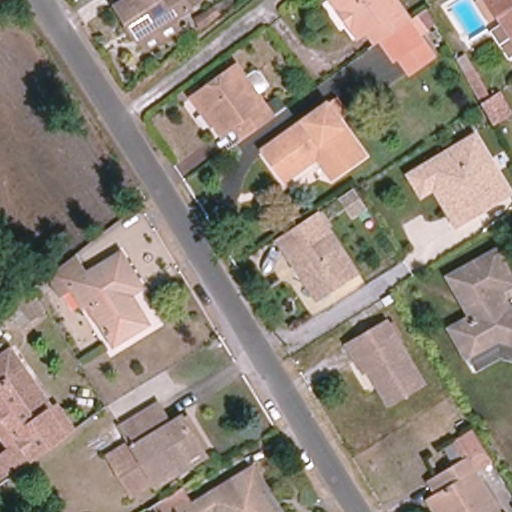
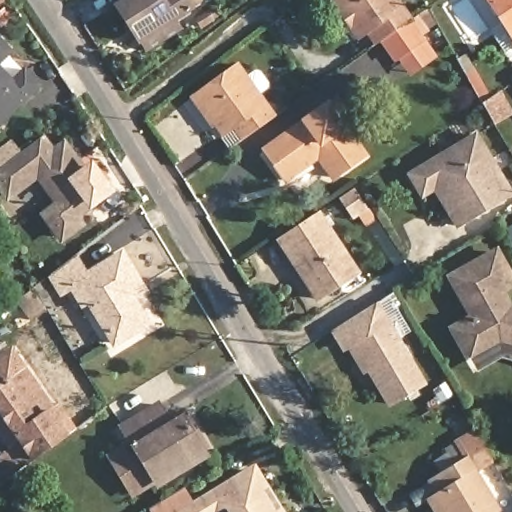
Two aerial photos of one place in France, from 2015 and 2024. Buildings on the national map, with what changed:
unchanged [(0,0),(1,0),(0,1),(0,0)]
unchanged [(186,0),(192,10),(140,43),(116,6),(118,5),(115,0),(186,0)]
unchanged [(333,0),(396,0),(409,19),(375,42),(368,31),(359,37),(333,0)]
unchanged [(490,0),(512,0),(512,34),(490,0)]
unchanged [(422,42),(395,61),(382,43),(409,24),(422,42)]
new [(0,128),(0,38),(14,53),(0,67),(11,80),(25,68),(42,86),(0,128)]
unchanged [(188,97),(233,65),(245,82),(257,73),(270,90),(257,98),(270,116),(238,140),(229,126),(218,134),(210,123),(208,125),(188,97)]
unchanged [(508,116),(493,125),(482,105),(464,73),(474,67),(492,99),(496,96),(508,116)]
unchanged [(280,181),(258,150),(330,98),(340,112),(331,118),(359,156),(328,178),(317,163),(314,158),(280,181)]
new [(80,218),(86,225),(62,244),(37,214),(54,203),(37,180),(8,203),(0,192),(0,148),(11,140),(20,153),(45,135),(52,146),(64,139),(85,165),(92,161),(115,192),(80,218)]
unchanged [(430,190),(418,197),(415,192),(405,177),(470,137),(506,195),(462,222),(453,227),(430,190)]
unchanged [(366,209),(353,218),(342,201),(355,193),(366,209)]
unchanged [(359,275),(320,301),(280,240),(318,214),(359,275)]
unchanged [(504,309),(512,311),(512,344),(496,340),(467,357),(451,329),(470,317),(446,277),(488,251),(506,281),(492,289),(504,309)]
unchanged [(87,273),(120,252),(142,287),(130,295),(148,324),(115,344),(77,283),(60,294),(49,277),(66,264),(76,256),(87,273)]
unchanged [(47,297),(42,300),(34,288),(40,284),(47,297)]
unchanged [(32,290),(37,298),(35,300),(42,310),(30,319),(17,301),(32,290)]
unchanged [(389,313),(365,328),(358,318),(383,303),(389,313)]
unchanged [(421,387),(387,407),(360,359),(355,362),(347,347),(385,325),(421,387)]
unchanged [(498,355),(475,369),(467,357),(496,340),(512,344),(512,358),(498,355)]
unchanged [(68,434),(0,484),(0,450),(4,447),(0,441),(0,354),(10,348),(68,434)]
unchanged [(120,424),(157,402),(171,425),(182,418),(204,454),(156,483),(155,481),(134,495),(110,456),(132,443),(120,424)]
unchanged [(437,497),(439,496),(431,483),(467,461),(456,443),(475,432),(492,461),(474,471),(499,512),(446,512),(437,497)]
unchanged [(255,468),(282,512),(153,512),(151,508),(182,489),(193,506),(255,468)]

